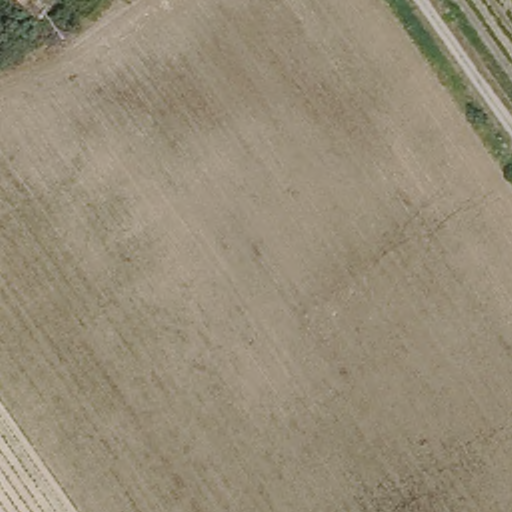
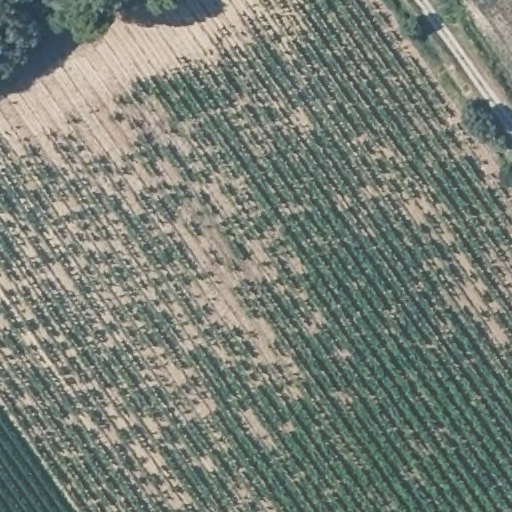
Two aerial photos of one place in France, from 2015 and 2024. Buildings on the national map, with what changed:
[]

